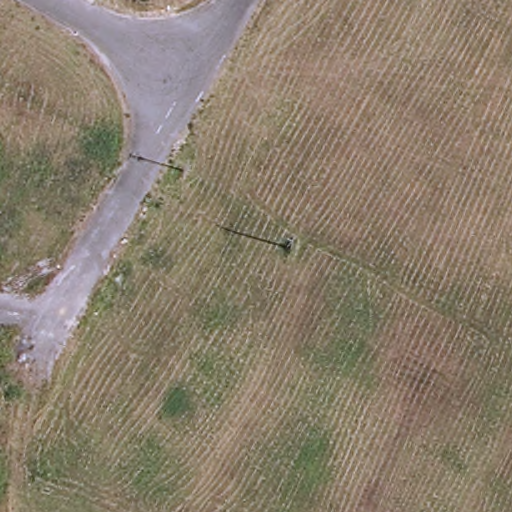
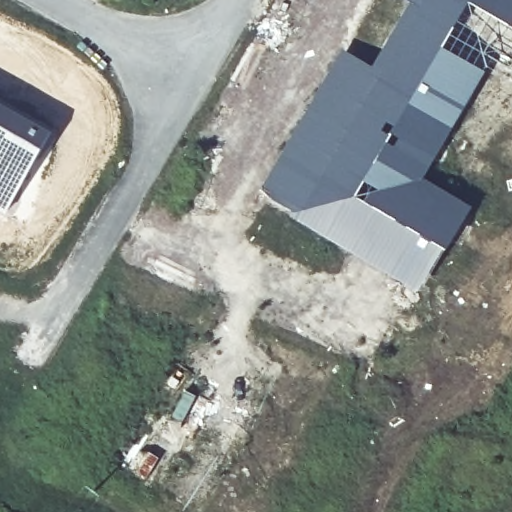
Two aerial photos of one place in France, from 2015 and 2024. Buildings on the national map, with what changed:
new [(340,50),(373,67),(409,1),(407,0),(512,0),(512,69),(482,54),(406,184),(460,215),(421,291),(257,196),(340,50)]
new [(53,131),(26,183),(6,213),(0,209),(0,101),(53,131)]

